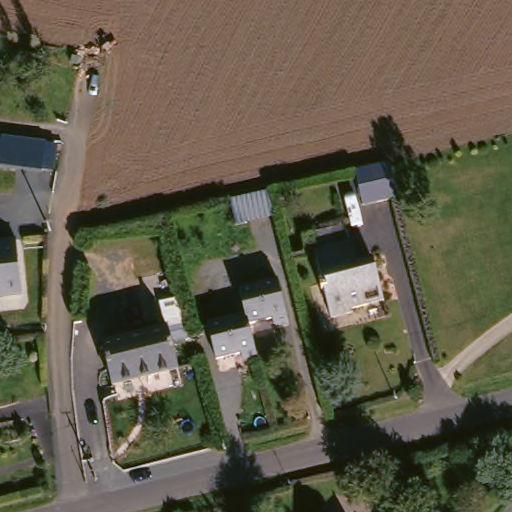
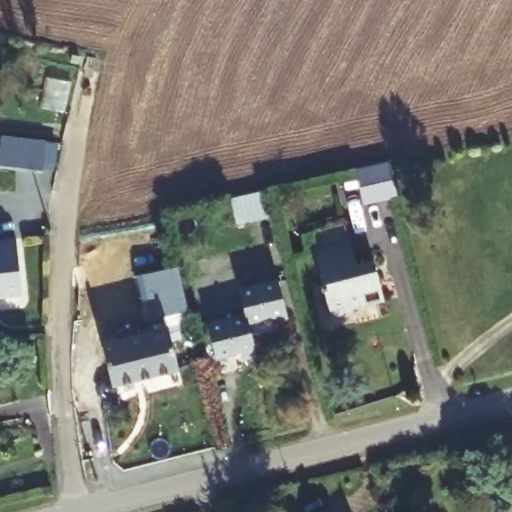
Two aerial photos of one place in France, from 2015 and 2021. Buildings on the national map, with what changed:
unchanged [(42,169),(0,163),(0,139),(1,132),(46,138),(42,169)]
unchanged [(398,196),(364,204),(355,170),(389,162),(398,196)]
unchanged [(275,189),(283,221),(239,231),(231,199),(275,189)]
unchanged [(355,304),(357,310),(337,316),(318,252),(311,233),(350,221),(357,240),(364,261),(376,258),(387,294),(355,304)]
unchanged [(27,295),(9,297),(8,293),(0,294),(0,250),(4,250),(3,242),(22,239),(27,295)]
new [(187,310),(191,337),(180,337),(176,324),(168,326),(165,316),(158,317),(153,298),(143,300),(138,274),(179,267),(187,310)]
unchanged [(281,271),(295,316),(277,322),(272,310),(251,318),(249,309),(241,283),(281,271)]
unchanged [(261,349),(249,353),(246,344),(218,352),(209,321),(249,309),(251,318),(261,349)]
unchanged [(187,366),(155,373),(154,370),(123,379),(113,340),(176,324),(187,366)]

